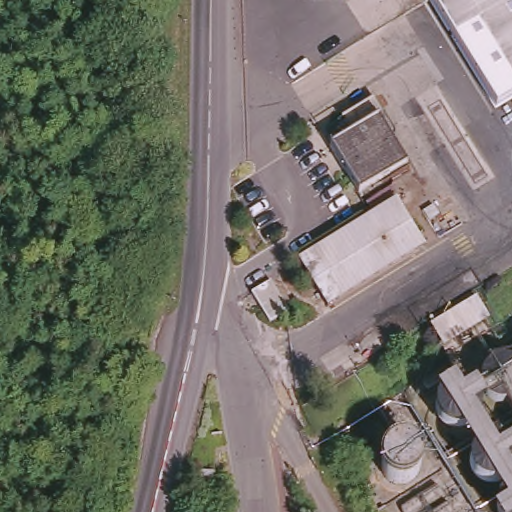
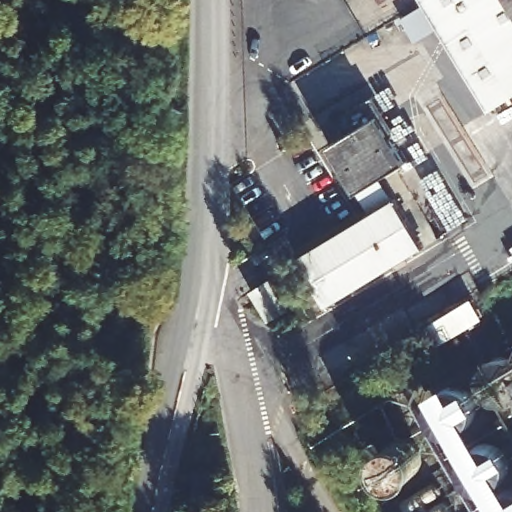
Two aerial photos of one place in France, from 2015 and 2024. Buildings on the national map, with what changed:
unchanged [(480,28),(453,43),(428,0),(512,0),(512,91),(480,28)]
unchanged [(387,136),(381,141),(397,169),(350,197),(320,148),(343,134),(335,119),(366,101),(387,136)]
unchanged [(415,255),(320,309),(294,263),(307,255),(387,207),(415,255)]

